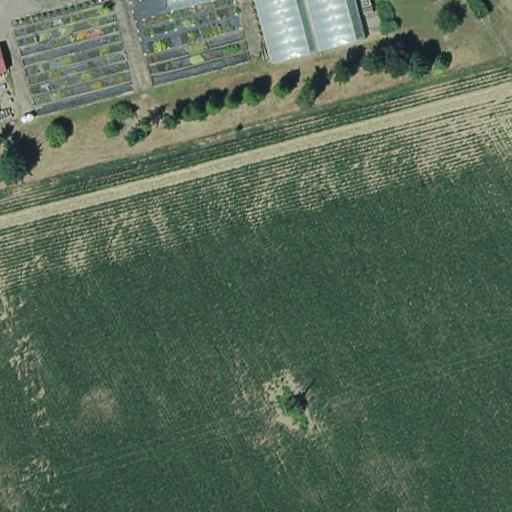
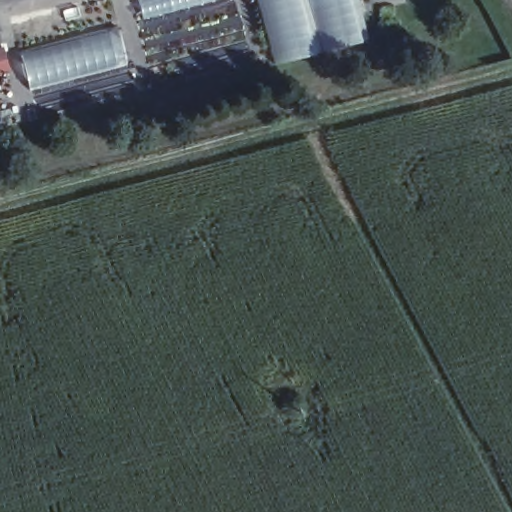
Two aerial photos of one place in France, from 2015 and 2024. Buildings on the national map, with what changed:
unchanged [(171,0),(217,0),(173,11),(171,0)]
unchanged [(280,65),(264,0),(359,0),(370,40),(280,65)]
new [(28,88),(20,54),(117,28),(126,64),(28,88)]
new [(11,71),(0,74),(0,45),(3,44),(11,71)]

